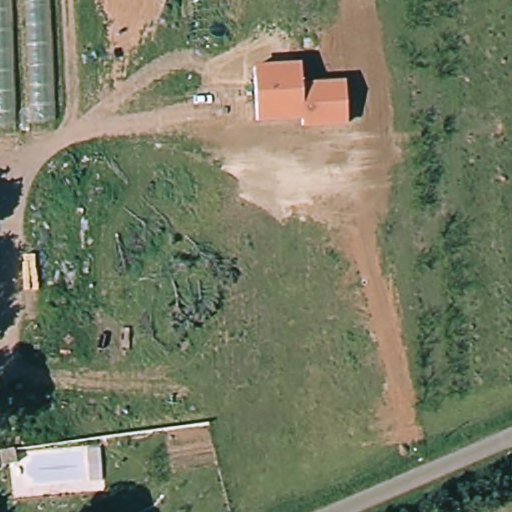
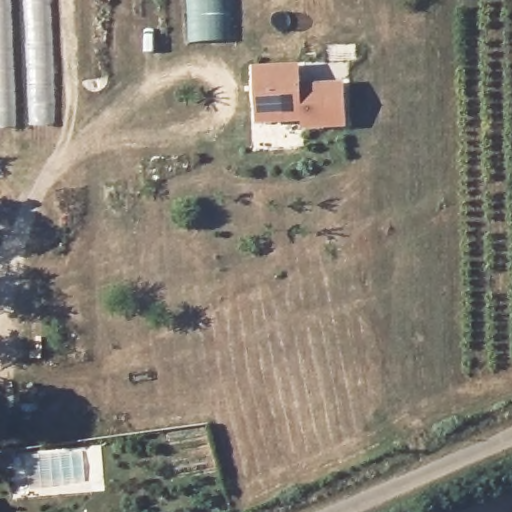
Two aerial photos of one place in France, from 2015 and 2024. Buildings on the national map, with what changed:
unchanged [(0,0),(48,0),(57,119),(0,131),(0,0)]
new [(186,0),(231,0),(231,41),(188,42),(186,0)]
unchanged [(346,128),(301,130),(301,123),(256,124),(254,66),(300,64),(301,84),(344,82),(346,128)]

